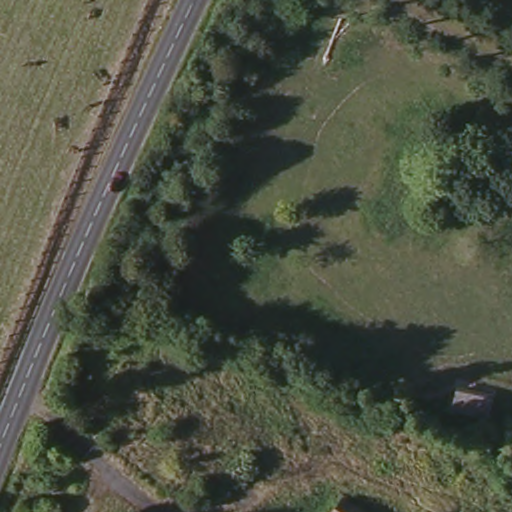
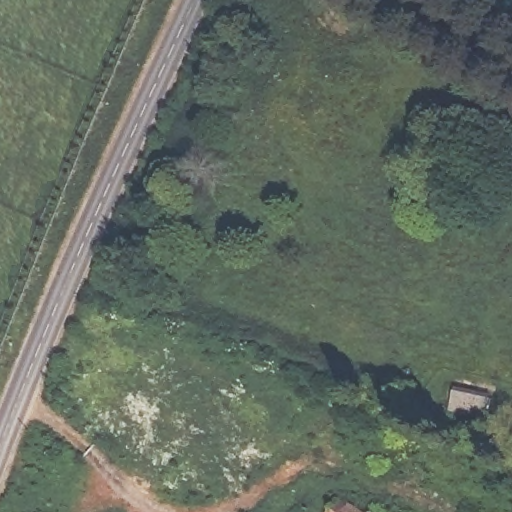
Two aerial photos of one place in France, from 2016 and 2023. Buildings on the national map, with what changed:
unchanged [(489,414),(448,409),(453,386),(492,393),(489,414)]
unchanged [(374,512),(330,512),(342,492),(374,512)]

